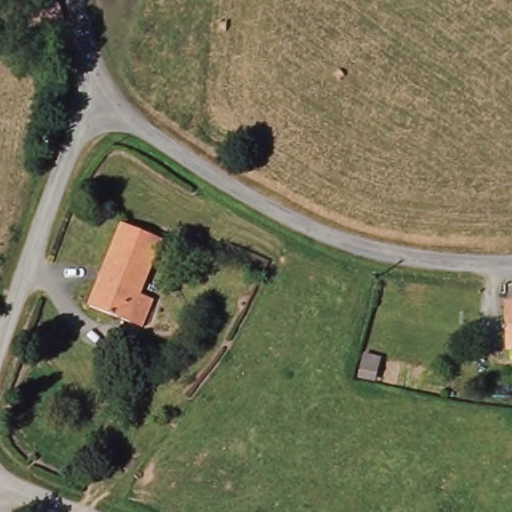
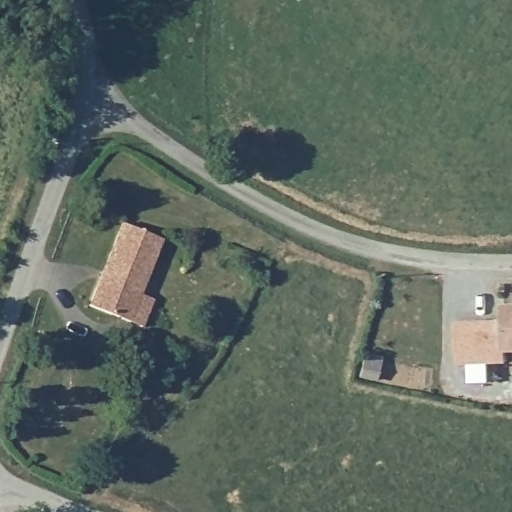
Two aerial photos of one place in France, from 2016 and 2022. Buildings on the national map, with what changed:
unchanged [(64,24),(51,44),(25,33),(42,0),(59,0),(61,14),(64,24)]
unchanged [(170,232),(138,297),(147,303),(133,334),(85,309),(134,213),(170,232)]
new [(506,362),(459,363),(457,320),(503,318),(503,302),(512,301),(512,351),(505,352),(506,362)]
demolished [(510,303),(512,303),(512,346),(507,346),(510,303)]

